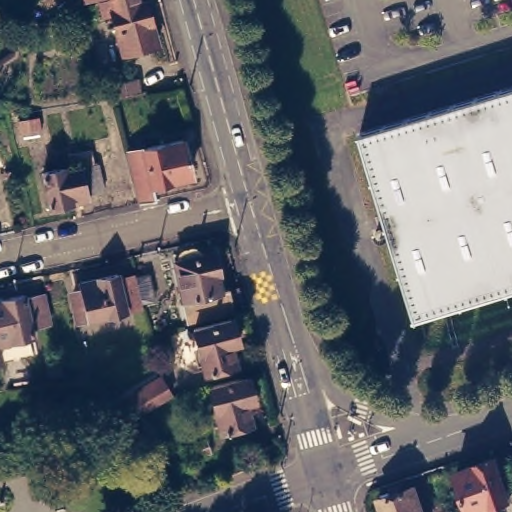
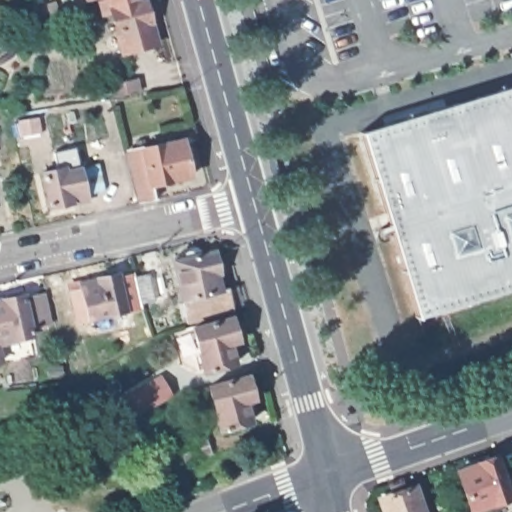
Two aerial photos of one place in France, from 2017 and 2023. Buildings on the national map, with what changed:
unchanged [(151,1),(163,44),(128,53),(117,14),(108,17),(103,1),(106,0),(150,0),(151,1)]
unchanged [(111,83),(138,78),(140,92),(113,97),(111,83)]
unchanged [(512,81),(512,286),(404,320),(360,128),(512,81)]
unchanged [(123,147),(178,135),(187,171),(148,180),(151,194),(135,198),(123,147)]
unchanged [(84,163),(59,167),(58,155),(82,150),(84,163)]
unchanged [(71,167),(88,164),(94,191),(78,195),(71,167)]
unchanged [(56,172),(71,169),(78,195),(78,201),(63,204),(63,203),(41,208),(33,173),(55,168),(56,172)]
unchanged [(185,254),(183,248),(193,245),(194,252),(214,247),(219,268),(217,269),(221,285),(228,283),(233,305),(188,315),(175,256),(185,254)]
unchanged [(149,274),(156,300),(143,303),(144,308),(126,312),(78,322),(72,298),(83,295),(80,283),(118,274),(119,279),(136,275),(136,277),(149,274)]
unchanged [(24,294),(42,290),(48,320),(30,324),(33,332),(31,332),(3,340),(0,329),(0,301),(2,301),(1,296),(23,291),(24,294)]
unchanged [(2,301),(0,301),(0,297),(1,296),(2,301)]
unchanged [(232,313),(238,336),(236,337),(238,344),(231,345),(234,359),(205,367),(193,323),(232,313)]
unchanged [(5,358),(0,360),(0,329),(3,340),(5,358)]
unchanged [(221,425),(209,382),(248,371),(254,394),(251,395),(253,401),(246,403),(250,417),(221,425)]
unchanged [(154,377),(166,396),(126,421),(106,409),(154,377)]
unchanged [(181,448),(206,439),(211,452),(186,461),(181,448)]
unchanged [(507,470),(510,479),(503,482),(506,491),(466,505),(452,467),(492,452),(499,472),(507,470)]
unchanged [(393,493),(391,488),(403,484),(404,490),(415,486),(424,512),(384,512),(379,498),(393,493)]

